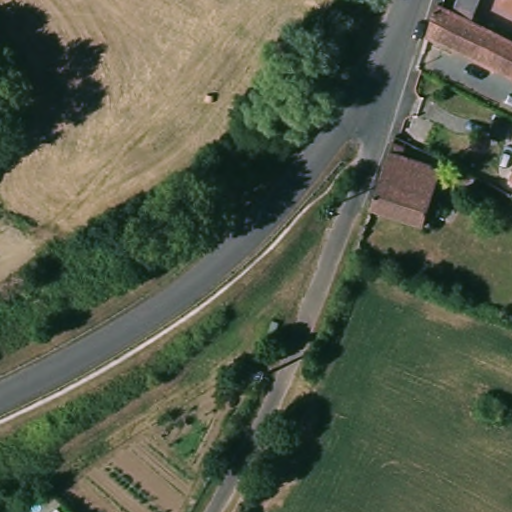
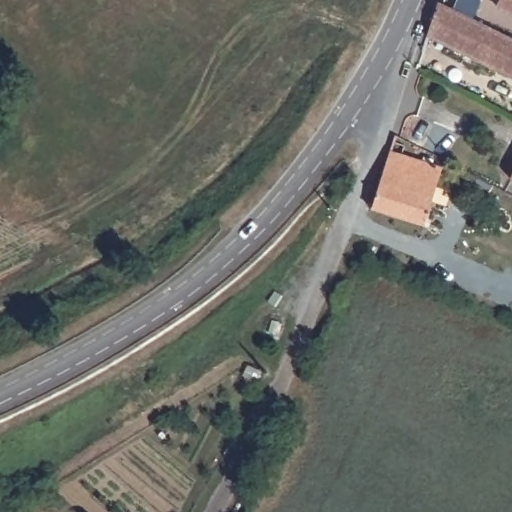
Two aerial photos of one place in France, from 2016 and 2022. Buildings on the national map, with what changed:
unchanged [(429,35),(431,31),(440,4),(445,6),(456,12),(461,0),(483,0),(475,21),(485,26),(512,40),(512,79),(462,54),(428,37),(429,35)]
unchanged [(499,1),(499,0),(512,0),(512,8),(499,1)]
unchanged [(396,135),(401,138),(410,142),(404,157),(443,170),(426,226),(415,222),(371,209),(392,149),(396,135)]

